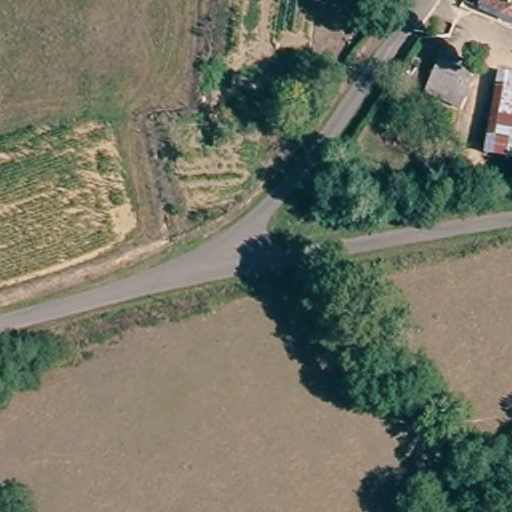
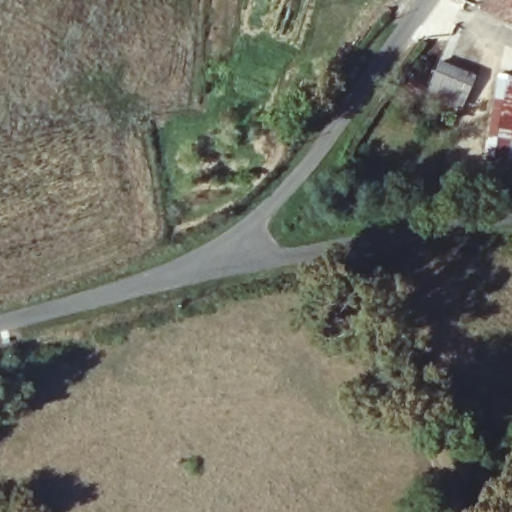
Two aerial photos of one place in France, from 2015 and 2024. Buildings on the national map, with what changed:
unchanged [(489,0),(512,0),(512,16),(486,7),(489,0)]
unchanged [(429,97),(434,85),(435,84),(444,61),(479,74),(467,100),(462,111),(429,97)]
unchanged [(501,75),(512,76),(512,156),(487,154),(501,75)]

